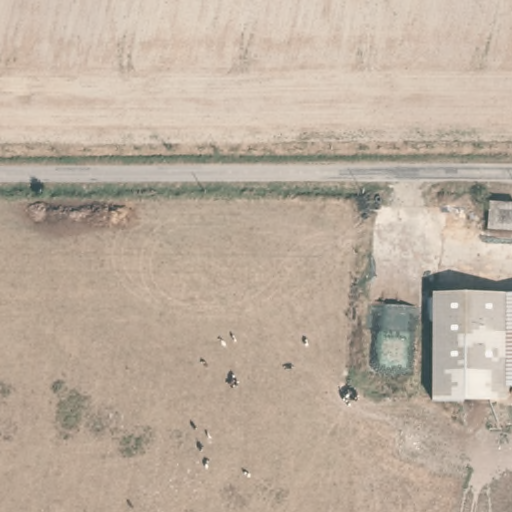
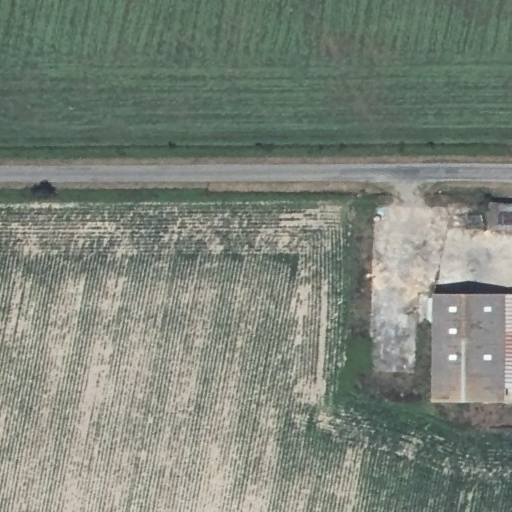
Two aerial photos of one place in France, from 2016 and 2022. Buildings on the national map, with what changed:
unchanged [(512,234),(485,233),(486,205),(512,205),(512,234)]
unchanged [(492,407),(432,405),(436,299),(512,300),(512,391),(492,390),(492,407)]

